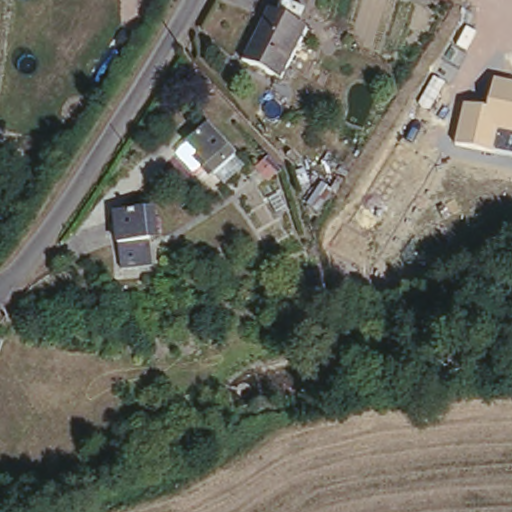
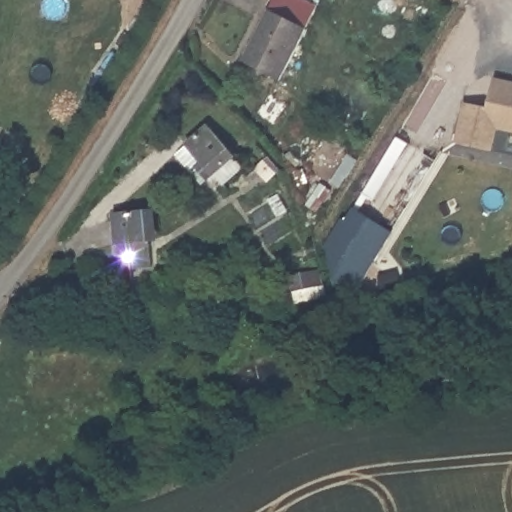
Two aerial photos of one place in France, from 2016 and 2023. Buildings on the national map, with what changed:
unchanged [(269,0),(307,20),(281,71),(242,53),(269,0)]
unchanged [(487,109),(494,79),(512,83),(512,156),(456,143),(464,103),(487,109)]
unchanged [(214,129),(240,160),(222,175),(196,145),(214,129)]
unchanged [(115,207),(146,203),(150,260),(119,263),(115,207)]
new [(390,230),(351,291),(335,284),(326,253),(352,206),(390,230)]
demolished [(301,277),(310,273),(314,291),(305,293),(301,277)]

